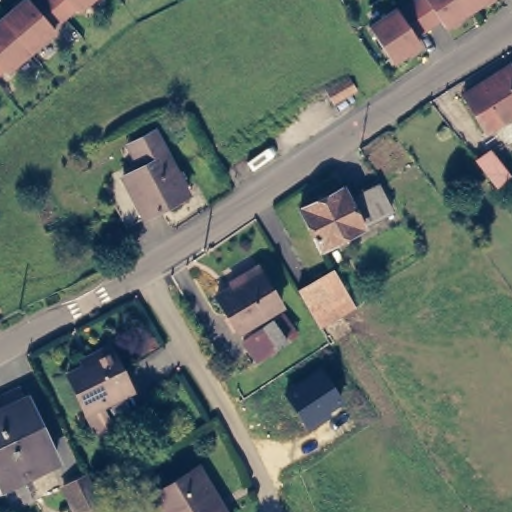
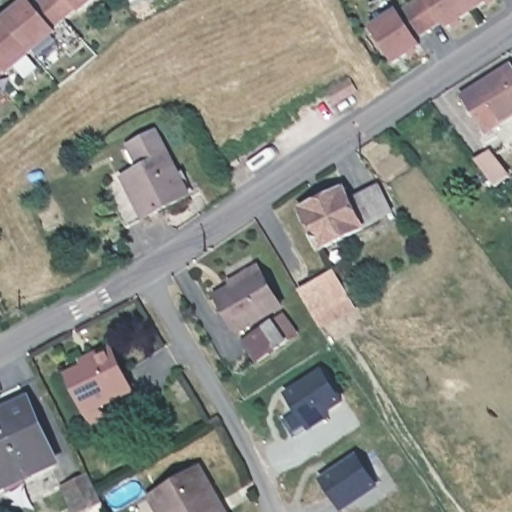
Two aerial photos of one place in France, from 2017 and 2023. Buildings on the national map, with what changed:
unchanged [(78,6),(77,4),(53,24),(55,26),(8,67),(6,65),(0,71),(0,18),(21,0),(86,0),(78,6)]
unchanged [(446,27),(442,20),(416,37),(421,44),(394,62),(369,27),(397,9),(398,11),(414,0),(486,0),(446,27)]
unchanged [(512,65),(512,111),(483,127),(463,91),(512,64),(512,65)]
unchanged [(356,85),(333,97),(326,86),(349,74),(356,85)]
unchanged [(114,192),(133,182),(128,173),(146,164),(133,141),(160,127),(182,169),(188,166),(198,186),(193,189),(193,191),(149,213),(132,223),(114,192)]
unchanged [(474,157),(488,148),(507,173),(494,182),(474,157)]
unchanged [(343,184),(350,197),(379,183),(393,209),(321,244),(301,206),(343,184)]
unchanged [(278,301),(236,326),(216,289),(259,264),(278,301)]
unchanged [(297,290),(329,268),(346,292),(353,302),(334,316),(321,325),(311,310),(297,290)]
unchanged [(284,341),(257,359),(243,339),(271,321),(284,341)]
unchanged [(129,388),(85,412),(65,374),(109,351),(129,388)]
unchanged [(321,367),(342,403),(329,412),(333,417),(309,431),(283,391),(321,367)]
unchanged [(0,484),(0,410),(21,401),(50,461),(0,484)]
new [(354,453),(375,483),(340,507),(319,477),(354,453)]
unchanged [(202,487),(211,501),(214,499),(223,512),(158,512),(148,496),(196,465),(208,483),(202,487)]
unchanged [(75,512),(61,485),(86,473),(93,484),(100,499),(75,512)]

